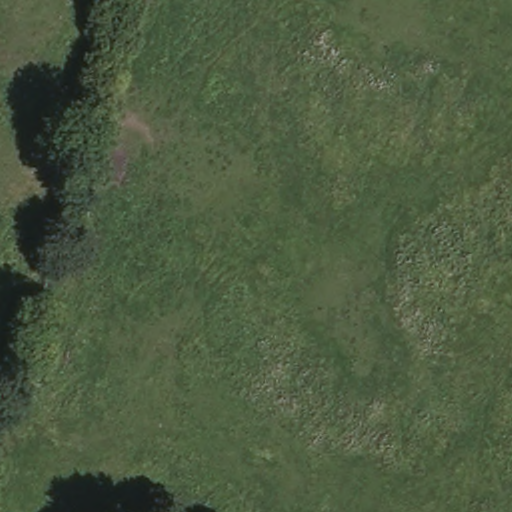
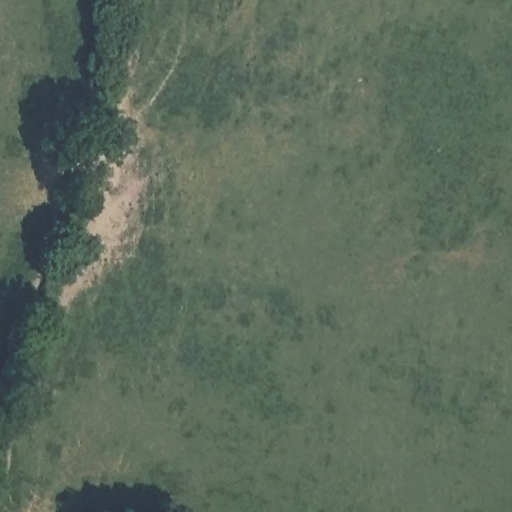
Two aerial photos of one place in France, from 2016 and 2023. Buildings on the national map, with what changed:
unchanged [(117,188),(94,184),(98,151),(122,154),(117,188)]

